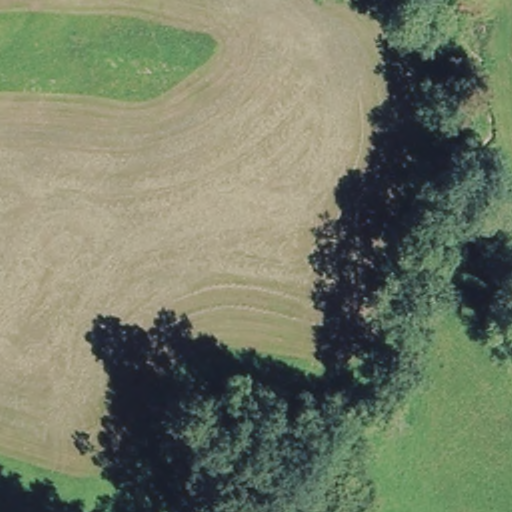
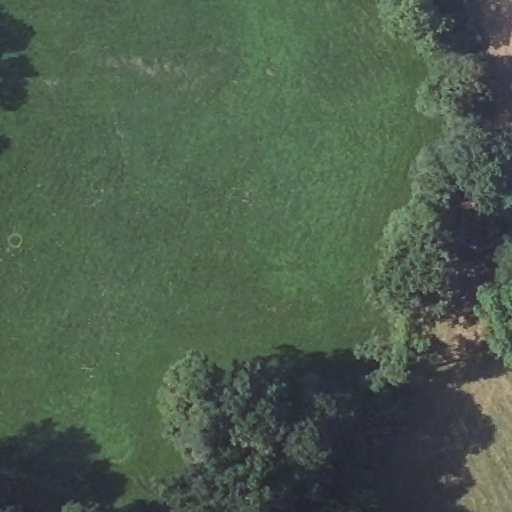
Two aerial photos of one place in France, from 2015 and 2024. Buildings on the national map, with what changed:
[]

